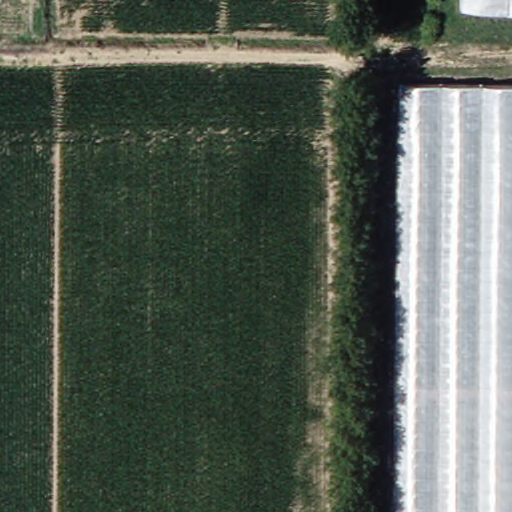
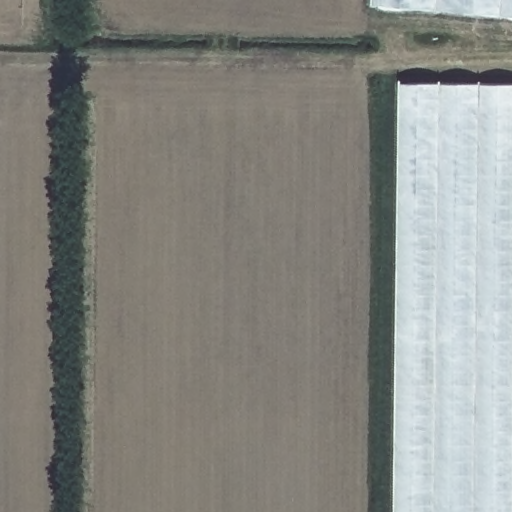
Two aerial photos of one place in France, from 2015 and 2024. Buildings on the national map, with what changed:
new [(377,0),(452,0),(451,11),(377,5),(377,0)]
unchanged [(451,11),(452,0),(512,0),(512,17),(451,11)]
unchanged [(401,512),(407,85),(512,86),(512,512),(401,512)]

